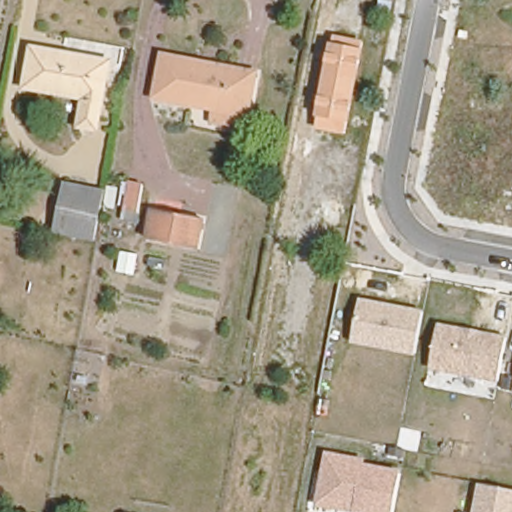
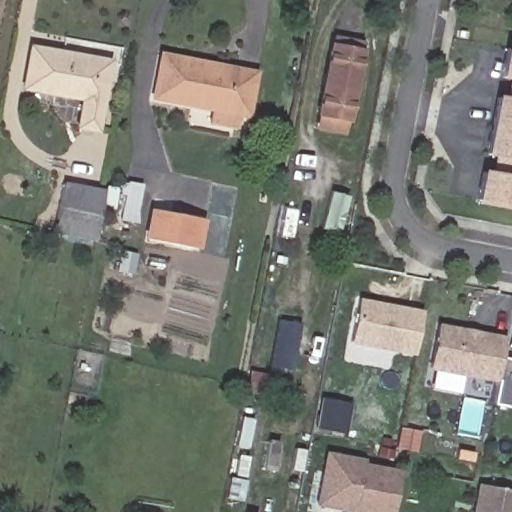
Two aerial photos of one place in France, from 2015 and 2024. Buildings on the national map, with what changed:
unchanged [(348,121),(319,116),(333,46),(362,53),(348,121)]
new [(475,202),(481,170),(490,172),(492,158),(484,156),(496,95),(506,96),(508,81),(500,79),(506,47),(512,48),(512,208),(475,202)]
unchanged [(107,66),(93,131),(77,128),(81,102),(24,89),(32,50),(107,66)]
unchanged [(208,121),(210,110),(147,99),(156,63),(157,54),(202,62),(202,61),(232,68),(255,73),(246,117),(236,115),(234,127),(208,121)]
unchanged [(54,230),(65,180),(104,188),(94,238),(54,230)]
unchanged [(121,182),(138,186),(133,214),(115,211),(121,182)]
unchanged [(202,222),(196,252),(145,243),(151,212),(202,222)]
unchanged [(417,357),(351,344),(360,299),(425,311),(417,357)]
unchanged [(500,383),(431,370),(440,323),(510,337),(500,383)]
unchanged [(335,512),(313,509),(325,452),(368,459),(367,466),(402,472),(395,512),(335,512)]
unchanged [(475,512),(479,485),(512,490),(512,512),(475,512)]

